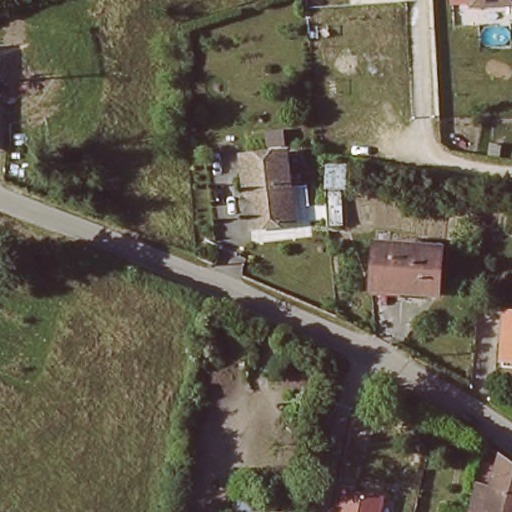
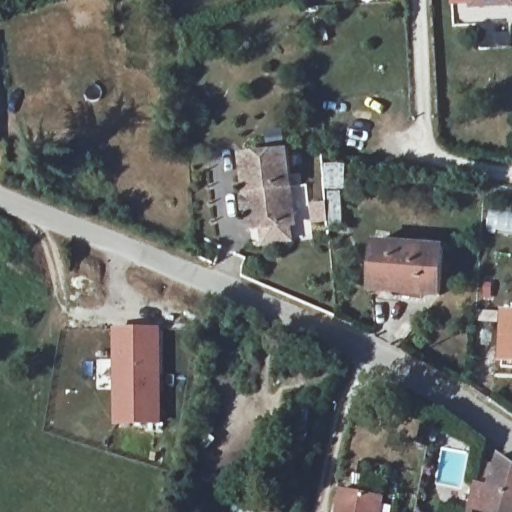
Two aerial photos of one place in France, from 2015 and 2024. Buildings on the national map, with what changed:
unchanged [(470,11),(469,0),(512,0),(512,9),(470,11)]
unchanged [(252,194),(248,153),(287,149),(298,229),(269,232),(256,233),(252,194)]
unchanged [(373,245),(434,248),(433,296),(394,292),(393,285),(371,285),(373,245)]
unchanged [(500,315),(512,316),(512,360),(498,359),(500,315)]
new [(161,328),(162,329),(163,424),(114,424),(113,329),(161,328)]
unchanged [(498,456),(512,466),(512,512),(467,512),(474,484),(487,486),(498,456)]
unchanged [(383,512),(339,512),(346,490),(386,498),(383,512)]
unchanged [(268,512),(234,512),(234,498),(267,502),(268,512)]

